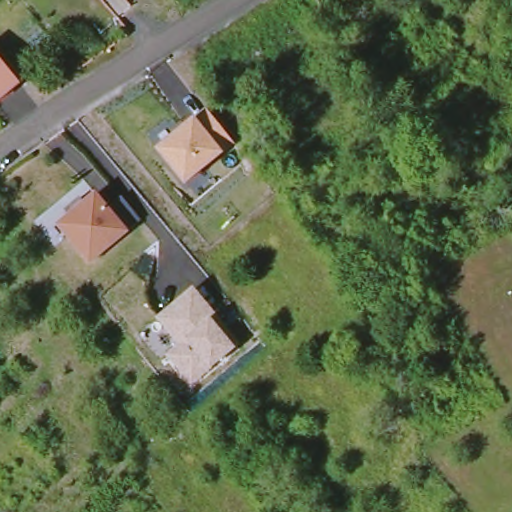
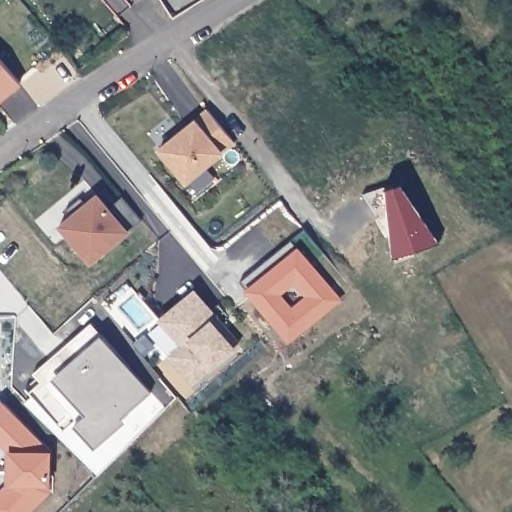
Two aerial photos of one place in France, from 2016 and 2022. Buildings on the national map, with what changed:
unchanged [(0,59),(20,81),(0,97),(0,59)]
unchanged [(222,152),(185,182),(156,146),(195,115),(207,107),(235,142),(222,152)]
new [(402,179),(440,240),(413,248),(411,241),(392,248),(389,219),(381,223),(363,193),(402,179)]
unchanged [(63,213),(78,202),(83,208),(94,199),(125,236),(88,266),(57,229),(68,220),(63,213)]
new [(298,248),(339,299),(288,339),(247,289),(298,248)]
unchanged [(192,383),(170,355),(182,345),(161,318),(185,298),(192,297),(235,348),(192,383)]
new [(90,321),(100,332),(80,349),(85,355),(52,383),(47,388),(32,374),(90,321)]
new [(85,355),(80,349),(100,332),(150,391),(120,419),(123,425),(94,452),(72,429),(84,417),(52,383),(85,355)]
new [(50,449),(49,484),(49,494),(30,512),(0,512),(0,487),(7,479),(7,450),(0,443),(0,401),(2,399),(50,449)]

